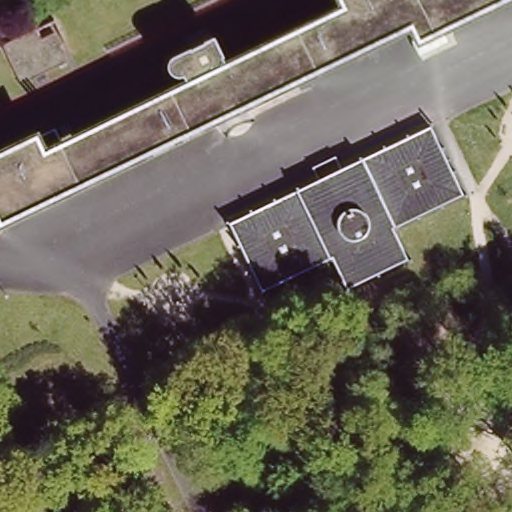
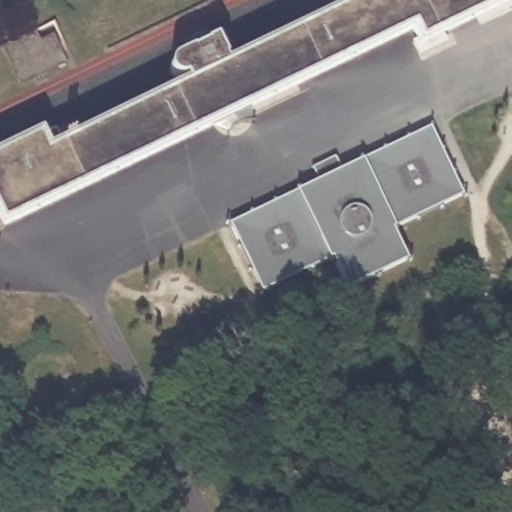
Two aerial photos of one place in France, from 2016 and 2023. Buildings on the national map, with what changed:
unchanged [(407,20),(390,46),(80,195),(60,154),(62,152),(189,91),(185,85),(184,85),(183,85),(182,86),(180,86),(179,85),(178,85),(177,85),(176,85),(175,85),(175,84),(174,84),(173,83),(173,82),(172,82),(172,81),(172,80),(171,80),(170,79),(170,78),(170,77),(170,76),(170,75),(170,74),(170,72),(171,71),(171,70),(172,70),(172,69),(172,68),(173,67),(174,67),(175,66),(175,65),(177,65),(215,46),(225,65),(223,65),(227,73),(345,16),(337,0),(512,0),(512,5),(421,49),(407,20)]
unchanged [(22,84),(5,45),(37,30),(56,22),(60,30),(55,31),(70,62),(22,84)]
unchanged [(408,259),(347,288),(333,260),(263,293),(230,225),(320,181),(313,169),(335,158),(342,171),(432,128),(465,195),(394,230),(408,259)]
unchanged [(53,133),(62,152),(60,154),(0,182),(0,159),(53,133)]
unchanged [(3,232),(0,225),(0,182),(60,154),(80,195),(3,232)]
unchanged [(45,512),(16,512),(39,500),(45,512)]

